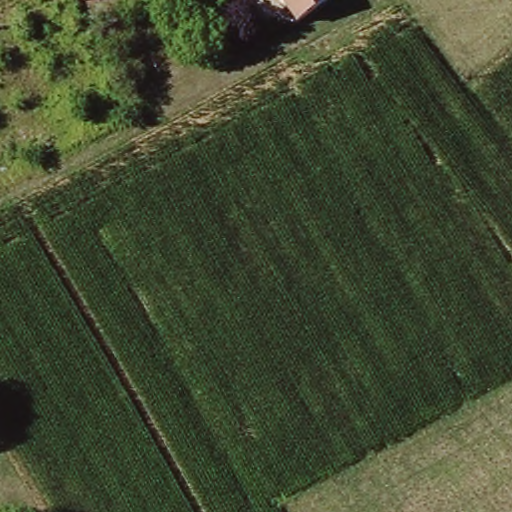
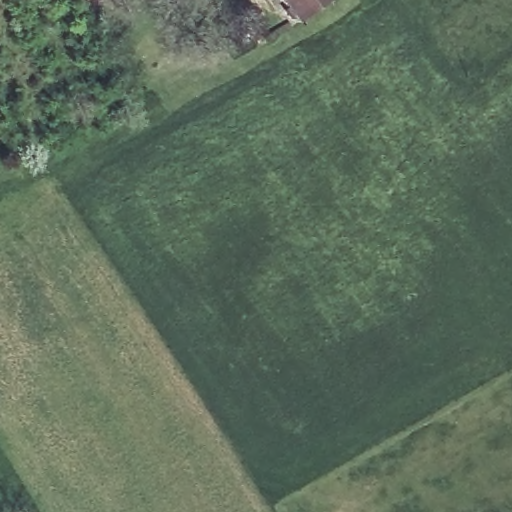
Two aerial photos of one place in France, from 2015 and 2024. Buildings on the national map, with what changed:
unchanged [(281,0),(321,0),(294,19),(281,0)]

